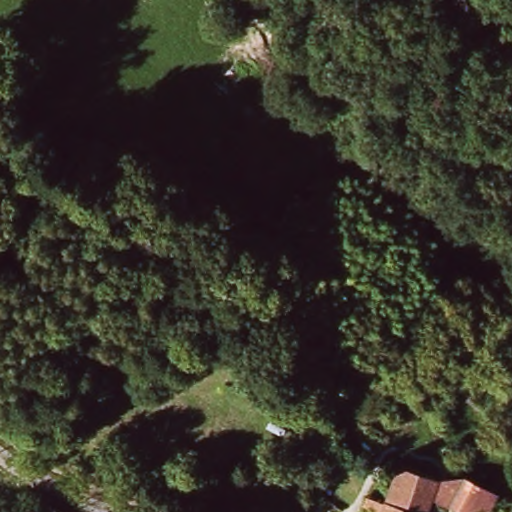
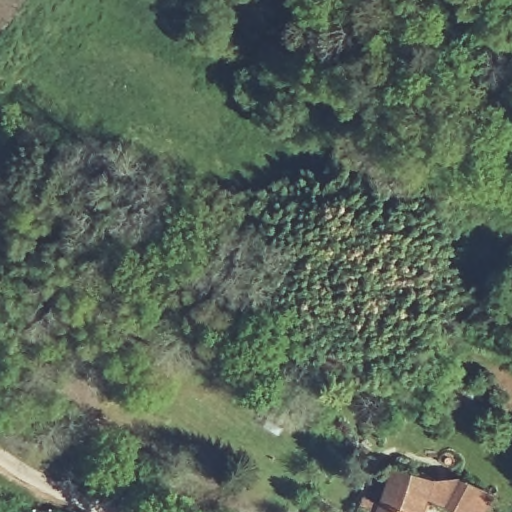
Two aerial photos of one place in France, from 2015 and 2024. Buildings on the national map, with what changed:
unchanged [(384,491),(393,462),(428,472),(418,512),(379,512),(384,491)]
unchanged [(486,512),(475,512),(473,511),(470,512),(460,512),(456,507),(429,496),(435,477),(469,473),(497,492),(486,512)]

